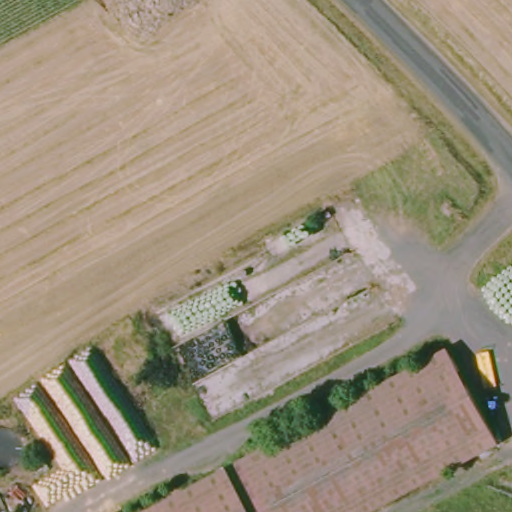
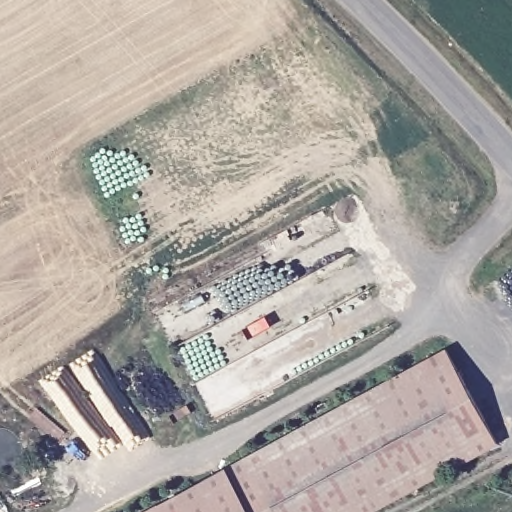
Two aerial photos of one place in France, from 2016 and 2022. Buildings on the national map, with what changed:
unchanged [(491,442),(364,512),(240,512),(218,470),(437,348),(491,442)]
unchanged [(156,512),(153,507),(218,470),(240,512),(156,512)]
unchanged [(143,512),(153,507),(156,512),(143,512)]

